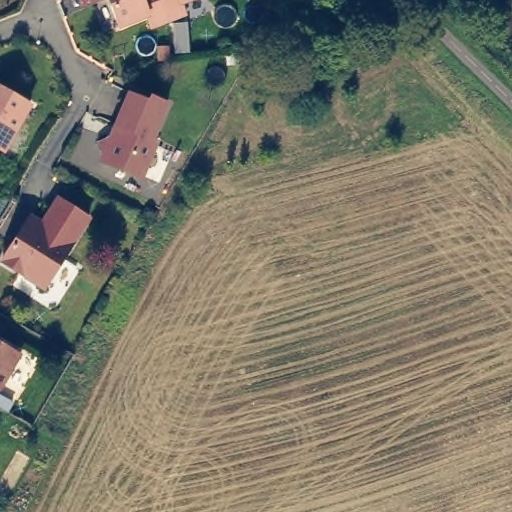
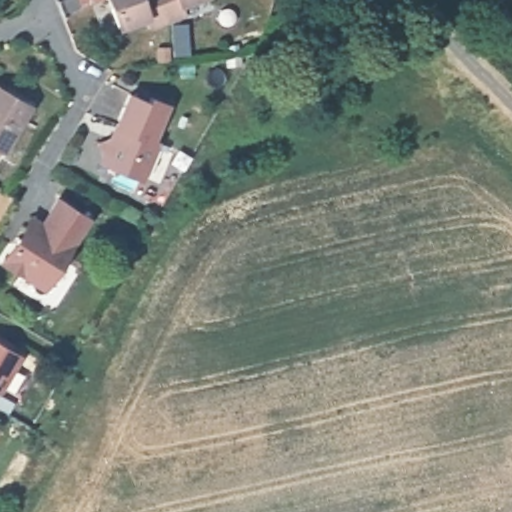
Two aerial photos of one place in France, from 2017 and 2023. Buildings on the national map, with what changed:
unchanged [(190,16),(156,29),(152,17),(124,28),(113,0),(197,0),(185,5),(190,16)]
unchanged [(4,152),(0,150),(0,89),(30,107),(4,152)]
unchanged [(152,141),(157,143),(141,180),(101,163),(103,157),(98,145),(111,140),(119,120),(130,95),(147,102),(150,98),(167,106),(152,141)]
unchanged [(2,263),(18,239),(22,242),(35,222),(42,226),(59,201),(89,220),(45,290),(2,263)]
unchanged [(0,390),(0,345),(20,356),(0,390)]

